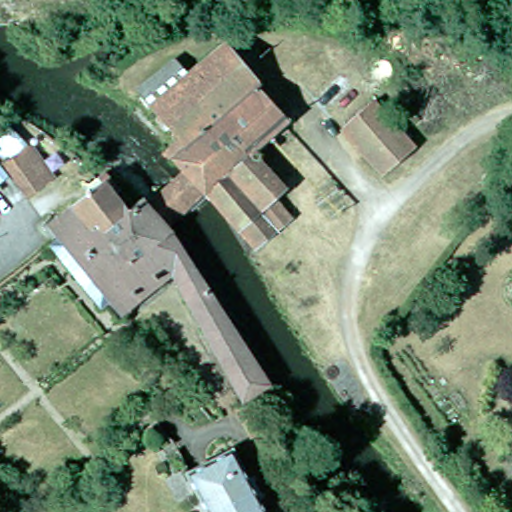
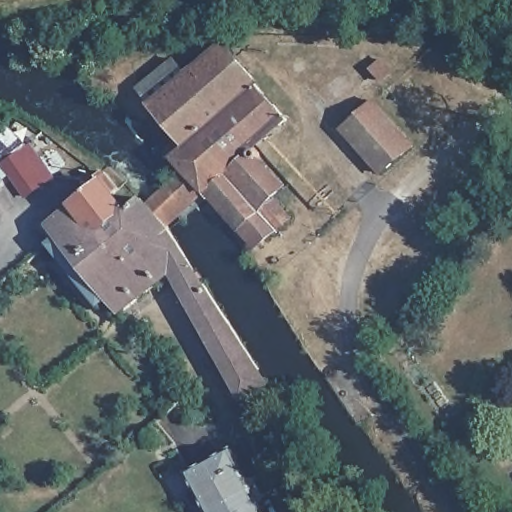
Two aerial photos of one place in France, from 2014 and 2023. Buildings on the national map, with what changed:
unchanged [(190,140),(156,100),(157,98),(145,83),(180,54),(192,67),(227,39),(293,115),(261,142),(211,182),(205,187),(167,219),(150,197),(189,165),(178,150),(190,140)]
unchanged [(409,142),(379,168),(339,124),(369,97),(409,142)]
unchanged [(0,159),(0,150),(21,136),(35,158),(11,175),(0,159)]
unchanged [(245,222),(211,182),(261,142),(294,181),(278,195),(245,222)]
unchanged [(17,186),(0,198),(0,162),(17,186)]
unchanged [(146,192),(150,197),(167,219),(185,256),(194,276),(196,275),(234,327),(239,333),(271,377),(248,395),(246,397),(171,275),(121,315),(109,300),(102,305),(51,241),(61,234),(52,222),(107,175),(132,204),(146,192)]
unchanged [(294,214),(260,242),(245,222),(278,195),(294,214)]
unchanged [(181,473),(222,448),(259,512),(203,512),(181,473)]

